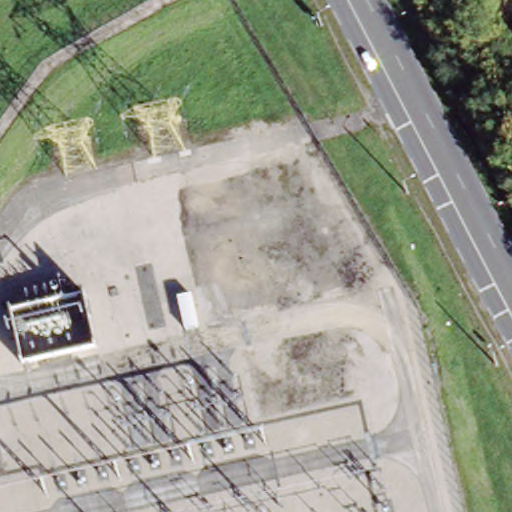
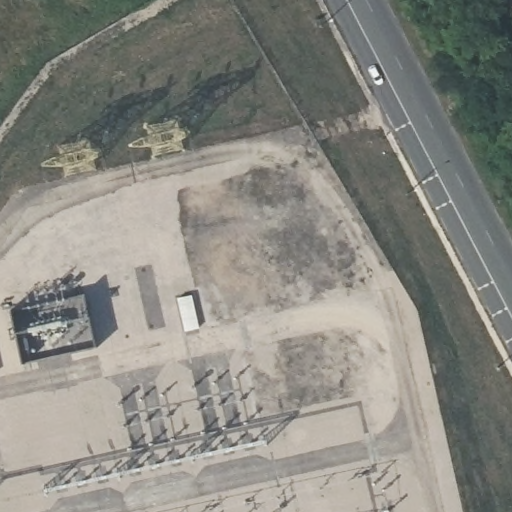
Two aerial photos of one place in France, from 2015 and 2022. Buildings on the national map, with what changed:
[]

